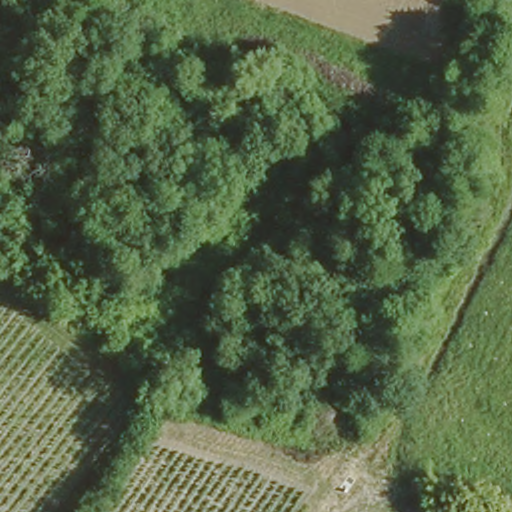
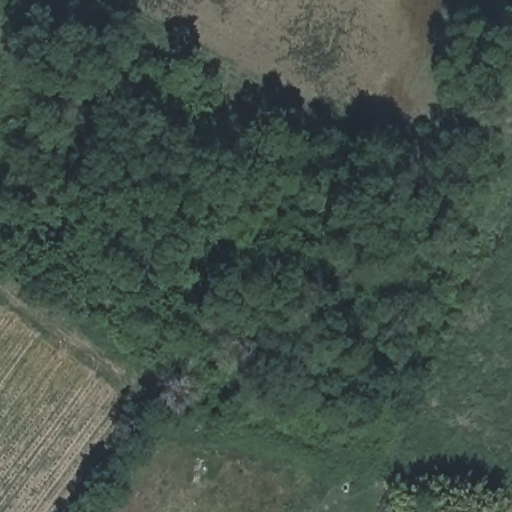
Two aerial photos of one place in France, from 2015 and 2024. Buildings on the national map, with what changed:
unchanged [(469,128),(461,158),(443,153),(450,123),(469,128)]

